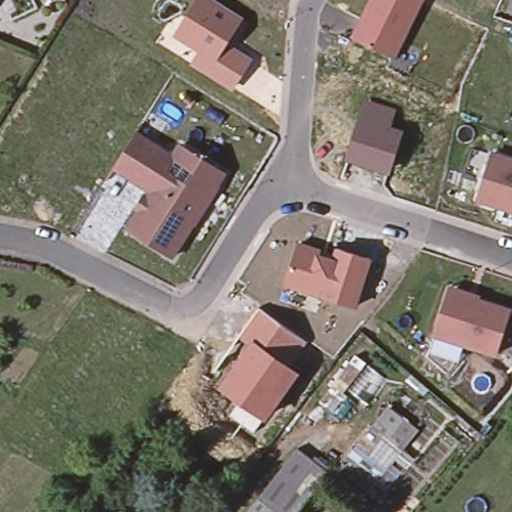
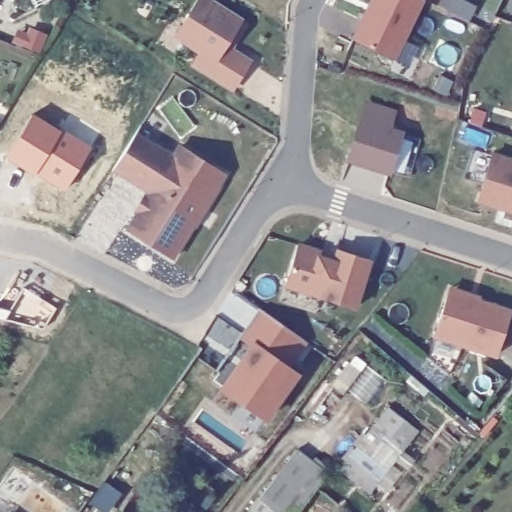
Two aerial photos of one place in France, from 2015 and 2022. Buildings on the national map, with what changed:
unchanged [(197,51),(173,36),(196,0),(216,0),(244,17),(229,44),(253,59),(234,91),(190,64),(197,51)]
unchanged [(352,37),(370,0),(422,0),(395,57),(352,37)]
unchanged [(358,120),(365,100),(397,110),(392,127),(404,131),(391,172),(345,160),(358,120)]
new [(34,116),(90,148),(66,195),(8,160),(34,116)]
unchanged [(175,255),(128,224),(147,186),(117,167),(140,131),(177,149),(227,171),(175,255)]
unchanged [(512,209),(478,199),(492,152),(512,158),(512,209)]
unchanged [(297,242),(334,254),(335,247),(372,258),(358,306),(284,284),(297,242)]
unchanged [(450,286),(482,296),(482,300),(512,310),(499,356),(435,338),(450,286)]
new [(57,311),(48,330),(8,322),(24,290),(57,311)]
unchanged [(220,386),(249,345),(239,338),(260,310),(305,342),(288,366),(299,373),(266,420),(220,386)]
unchanged [(387,402),(419,429),(404,451),(370,425),(387,402)]
unchanged [(400,452),(365,494),(336,469),(370,427),(400,452)]
unchanged [(312,458),(316,455),(330,465),(326,470),(328,471),(296,512),(280,512),(259,495),(285,461),(297,446),(312,458)]
unchanged [(259,495),(280,512),(246,512),(259,495)]

